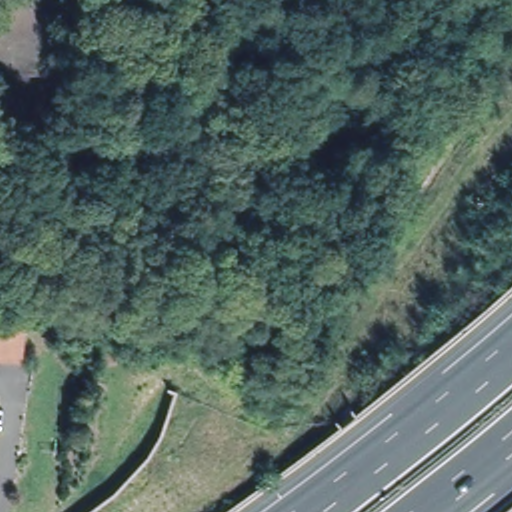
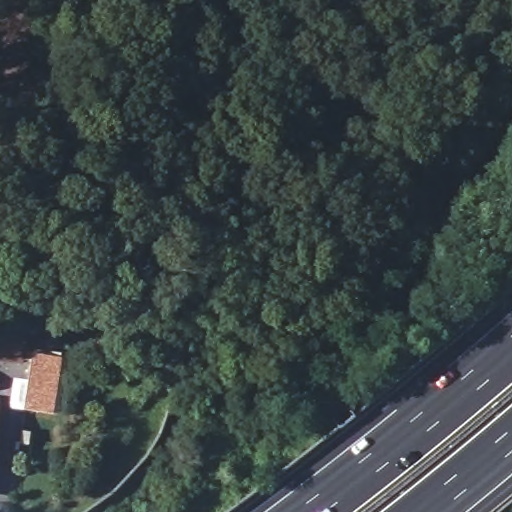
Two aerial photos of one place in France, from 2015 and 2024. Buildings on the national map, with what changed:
new [(32,353),(63,357),(54,415),(23,410),(32,353)]

